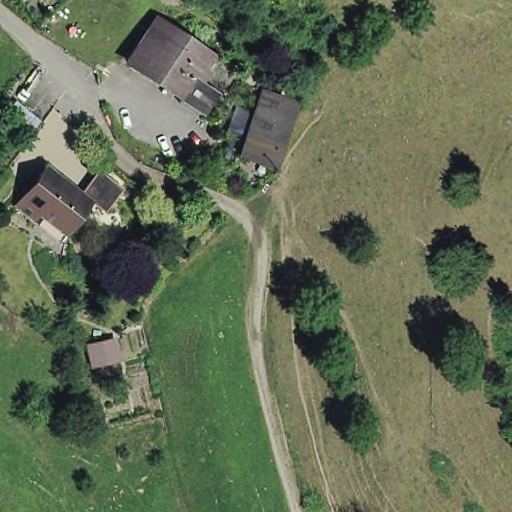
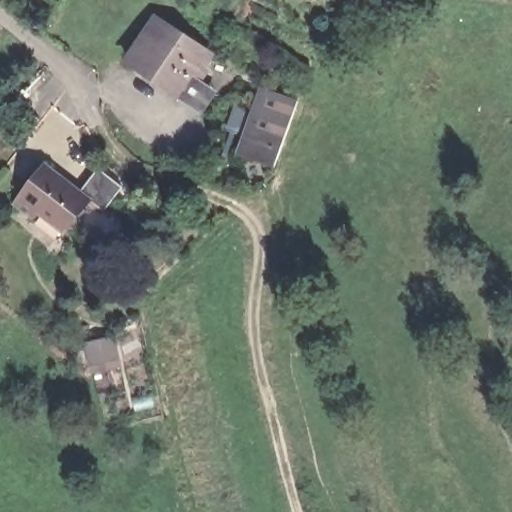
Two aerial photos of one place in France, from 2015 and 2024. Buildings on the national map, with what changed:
unchanged [(200,115),(183,103),(182,101),(129,66),(157,23),(210,58),(203,69),(204,69),(207,73),(201,85),(214,95),(200,115)]
unchanged [(296,100),(272,164),(271,166),(239,153),(246,135),(224,128),(232,104),(255,111),(263,88),(296,100)]
unchanged [(38,214),(32,221),(14,207),(44,169),(80,197),(98,173),(121,191),(104,214),(89,204),(64,235),(38,214)]

